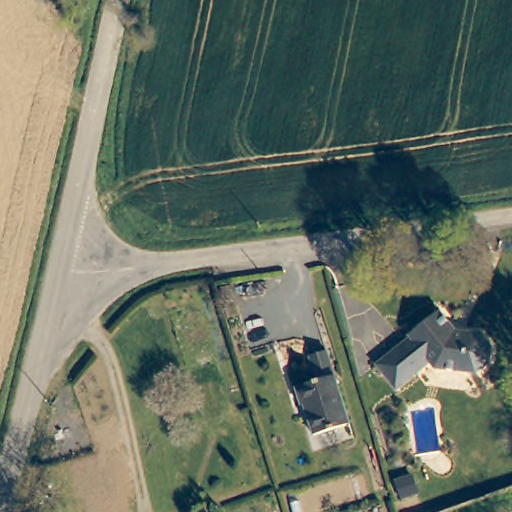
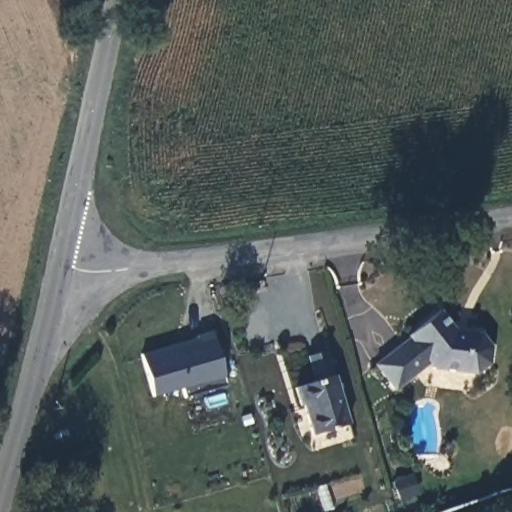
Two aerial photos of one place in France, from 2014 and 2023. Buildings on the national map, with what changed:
unchanged [(488,367),(475,376),(435,370),(431,365),(396,391),(377,366),(411,339),(410,337),(441,313),(456,333),(455,337),(463,338),(463,334),(481,337),(490,351),(488,367)]
new [(185,396),(182,387),(155,396),(141,354),(197,338),(196,334),(213,329),(228,383),(185,396)]
unchanged [(318,433),(308,401),(304,402),(299,386),(317,379),(309,354),(326,348),(335,373),(351,421),(318,433)]
unchanged [(399,481),(415,477),(420,494),(405,499),(399,481)]

